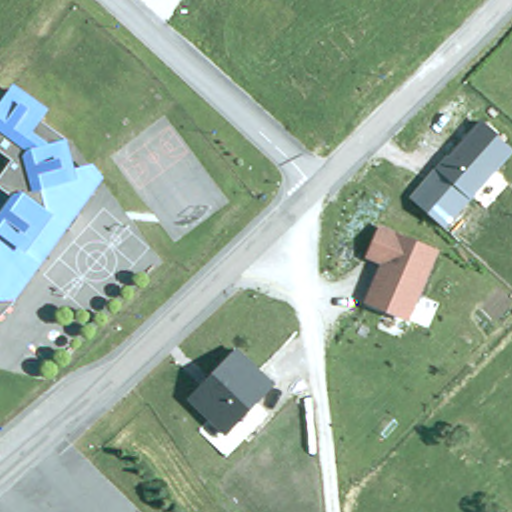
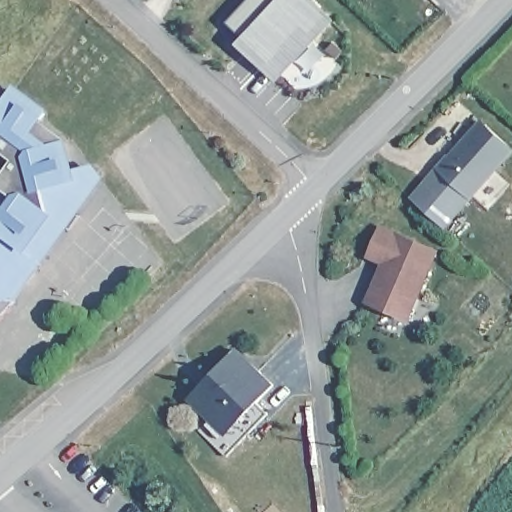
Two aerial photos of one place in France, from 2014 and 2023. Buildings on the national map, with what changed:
new [(277,81),(235,45),(243,35),(228,21),(247,0),(313,0),(334,19),(277,81)]
unchanged [(12,309),(9,313),(5,317),(2,319),(0,321),(0,181),(12,165),(0,157),(0,110),(12,94),(45,118),(40,124),(70,145),(62,148),(70,175),(95,169),(105,182),(79,218),(43,267),(17,304),(12,309)]
unchanged [(512,152),(446,230),(410,198),(479,120),(512,148),(512,152)]
unchanged [(383,264),(367,257),(381,224),(436,251),(408,319),(367,303),(383,264)]
unchanged [(277,382),(225,434),(185,400),(238,349),(277,382)]

